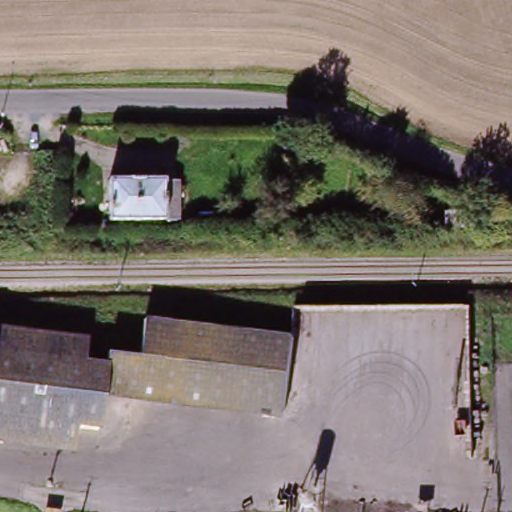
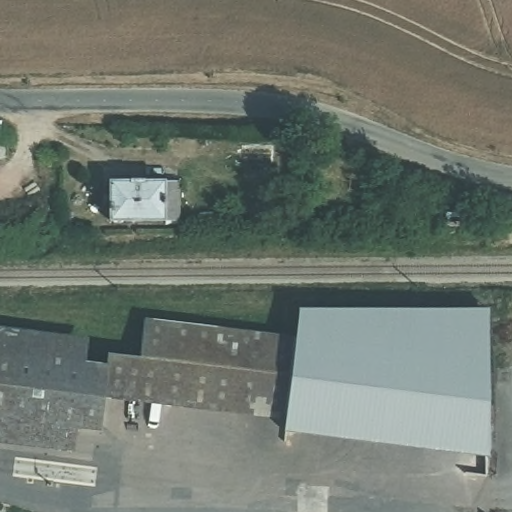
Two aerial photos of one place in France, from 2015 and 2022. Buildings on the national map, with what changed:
unchanged [(107,175),(165,174),(165,179),(180,179),(180,216),(107,218),(107,175)]
unchanged [(479,232),(479,224),(467,226),(468,236),(445,234),(443,208),(499,208),(500,232),(479,232)]
new [(298,306),(490,306),(490,458),(283,432),(285,416),(290,417),(300,339),(295,338),(298,306)]
unchanged [(107,367),(109,354),(143,358),(147,320),(300,339),(290,417),(105,395),(99,435),(80,433),(0,423),(0,354),(90,365),(107,367)]
unchanged [(90,365),(0,354),(0,325),(93,337),(90,365)]
unchanged [(78,453),(0,443),(0,423),(80,433),(78,453)]

